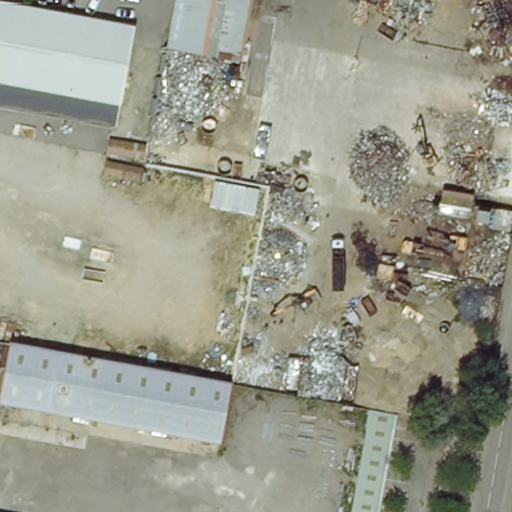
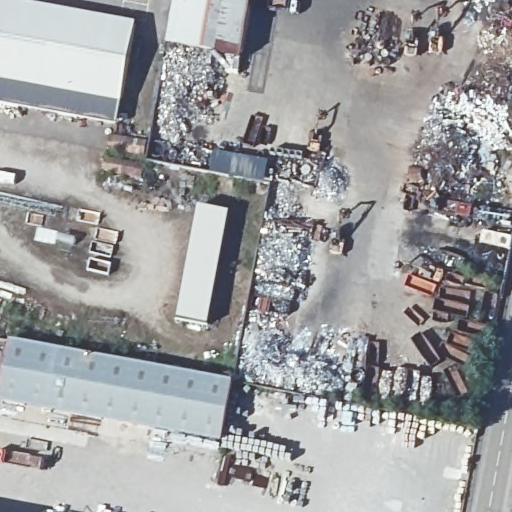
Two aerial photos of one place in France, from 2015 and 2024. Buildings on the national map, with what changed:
unchanged [(235,61),(162,49),(171,0),(249,0),(235,61)]
unchanged [(135,39),(120,116),(0,93),(0,13),(135,39)]
demolished [(209,208),(216,178),(265,186),(256,215),(209,208)]
new [(200,207),(230,213),(210,327),(179,321),(200,207)]
unchanged [(184,376),(233,385),(222,444),(0,404),(11,344),(184,376)]
demolished [(400,412),(381,512),(353,512),(372,407),(396,411),(400,412)]

